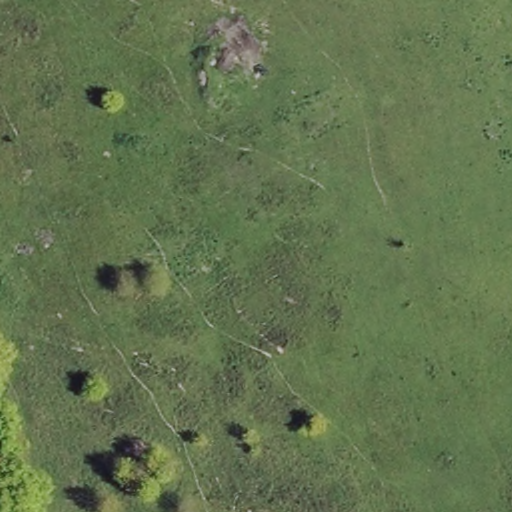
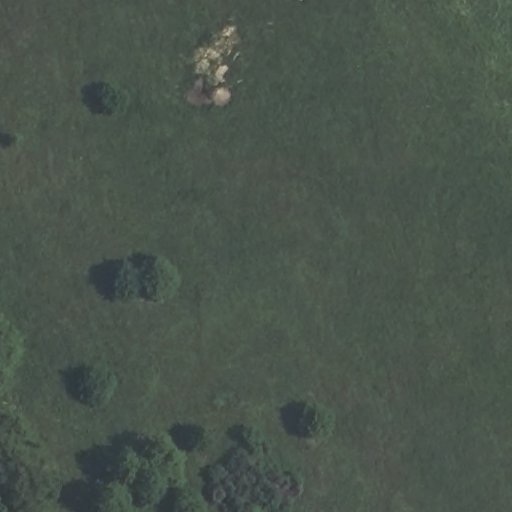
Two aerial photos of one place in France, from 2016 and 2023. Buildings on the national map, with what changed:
[]

